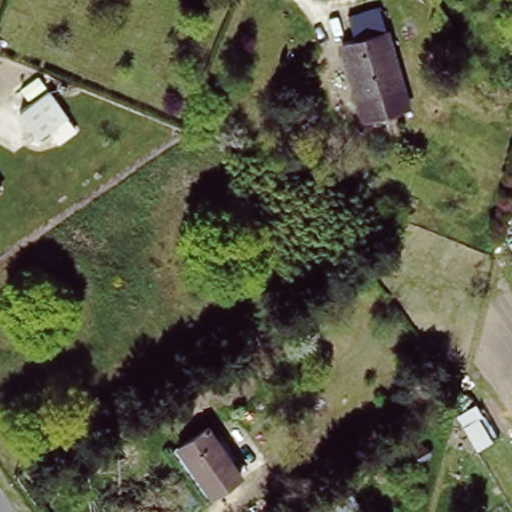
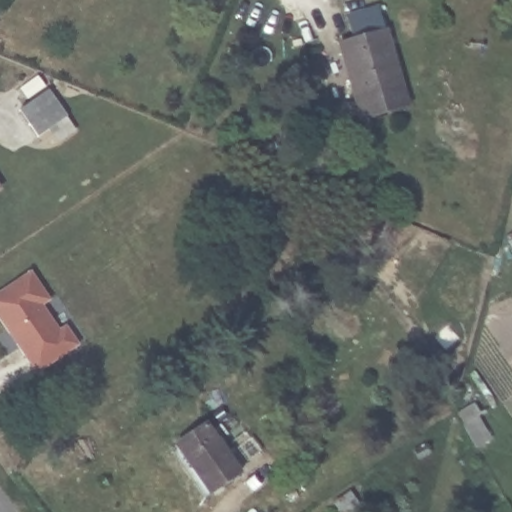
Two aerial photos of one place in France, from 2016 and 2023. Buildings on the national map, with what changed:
unchanged [(360,97),(355,82),(357,82),(345,41),(390,28),(412,101),(381,110),(366,115),(360,97)]
unchanged [(39,73),(46,84),(27,98),(20,87),(39,73)]
unchanged [(57,140),(50,128),(37,136),(19,109),(49,88),(67,115),(74,129),(57,140)]
new [(45,306),(62,330),(68,325),(83,346),(39,373),(0,318),(0,293),(33,271),(53,300),(45,306)]
unchanged [(243,474),(212,495),(178,443),(210,422),(243,474)]

